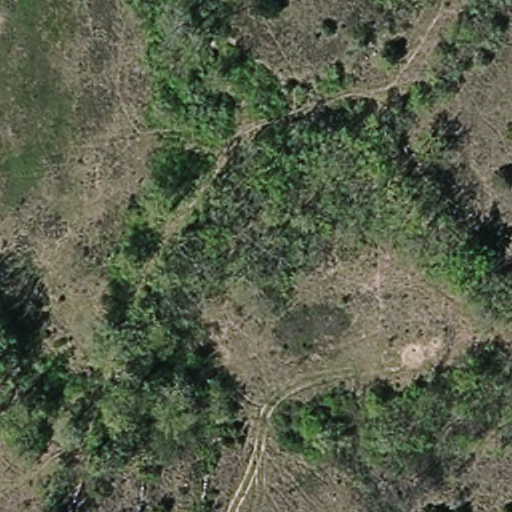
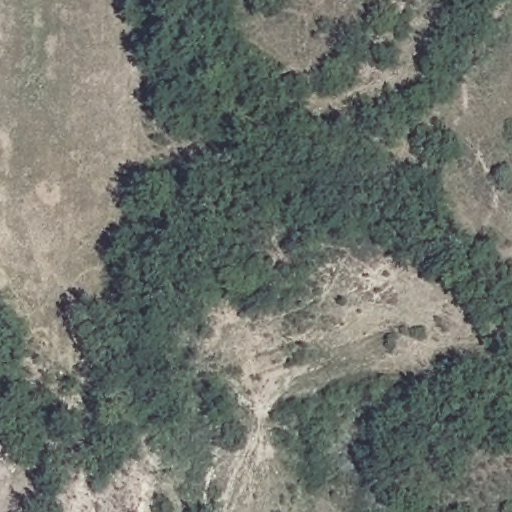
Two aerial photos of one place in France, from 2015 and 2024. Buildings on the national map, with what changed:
[]

